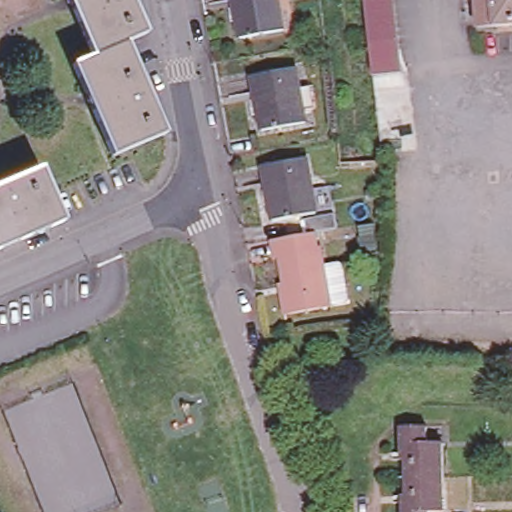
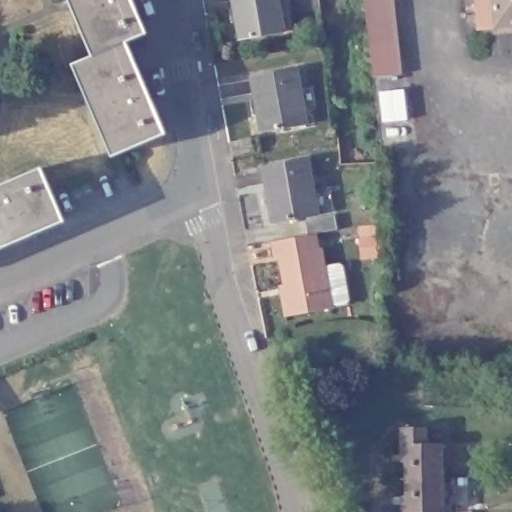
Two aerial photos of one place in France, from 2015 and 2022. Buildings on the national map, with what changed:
unchanged [(69,0),(130,0),(148,39),(125,49),(96,62),(69,0)]
unchanged [(285,30),(244,37),(237,0),(280,0),(285,30)]
unchanged [(376,76),(368,0),(393,0),(404,72),(376,76)]
unchanged [(512,27),(480,29),(477,0),(512,0),(512,27)]
unchanged [(125,49),(166,140),(112,164),(72,72),(96,62),(125,49)]
unchanged [(307,123),(265,131),(255,77),(296,70),(307,123)]
unchanged [(304,160),(314,215),(270,222),(260,167),(304,160)]
unchanged [(0,253),(0,189),(42,171),(65,225),(0,253)]
unchanged [(305,235),(302,221),(332,215),(335,230),(314,235),(305,235)]
unchanged [(280,258),(274,259),(271,243),(314,235),(316,252),(320,251),(323,268),(339,265),(342,268),(348,301),(345,306),(329,308),(329,309),(325,310),(292,315),(282,317),(282,314),(280,304),(280,295),(279,285),(285,284),(280,258)]
unchanged [(402,445),(404,428),(430,427),(430,445),(445,445),(446,480),(407,481),(406,445),(402,445)]
unchanged [(446,480),(446,512),(408,512),(407,481),(446,480)]

